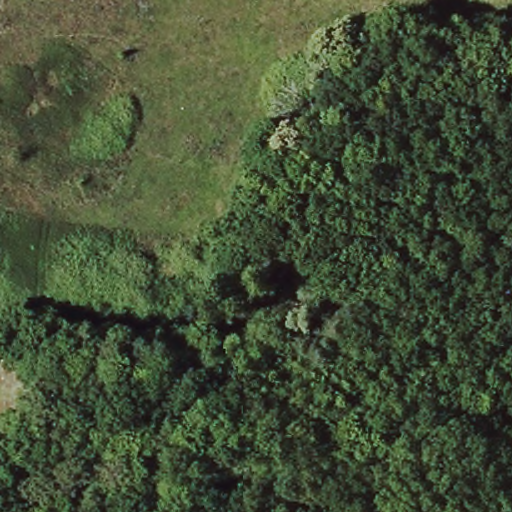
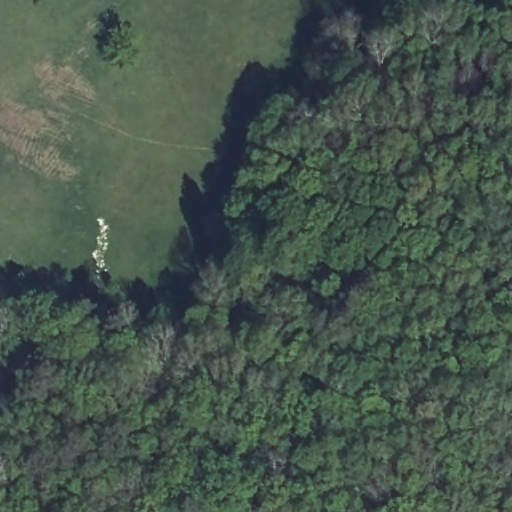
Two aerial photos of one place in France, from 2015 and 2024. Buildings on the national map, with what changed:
unchanged [(35,401),(48,402),(47,406),(35,407),(35,401)]

